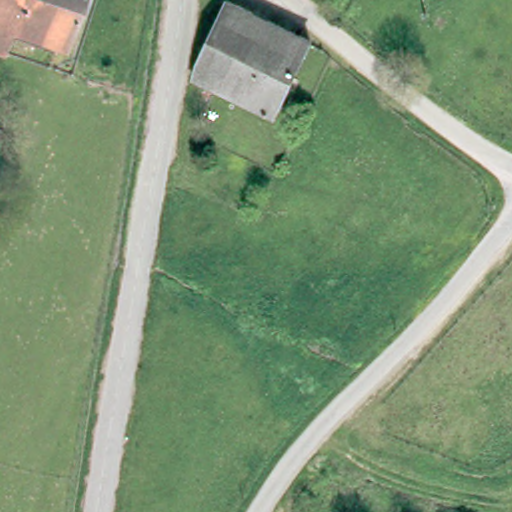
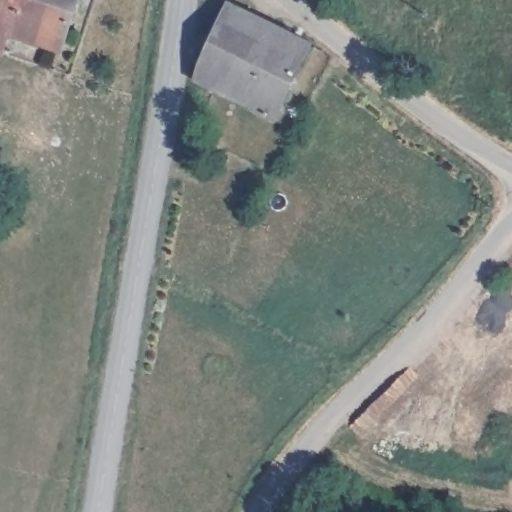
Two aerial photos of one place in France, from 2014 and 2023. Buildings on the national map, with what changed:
unchanged [(0,53),(0,0),(74,0),(60,47),(7,32),(0,53)]
unchanged [(193,78),(227,1),(309,41),(272,116),(193,78)]
unchanged [(448,22),(441,30),(435,26),(442,17),(448,22)]

